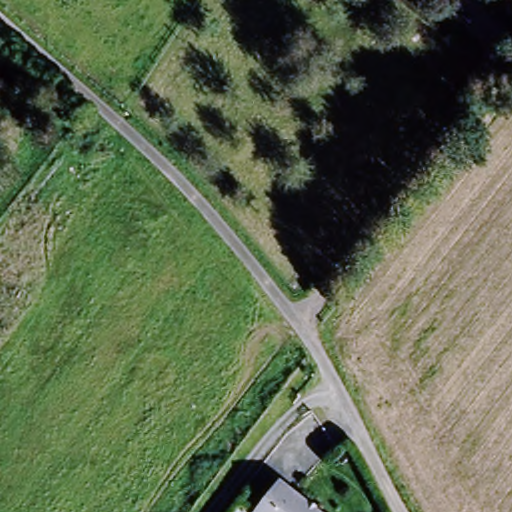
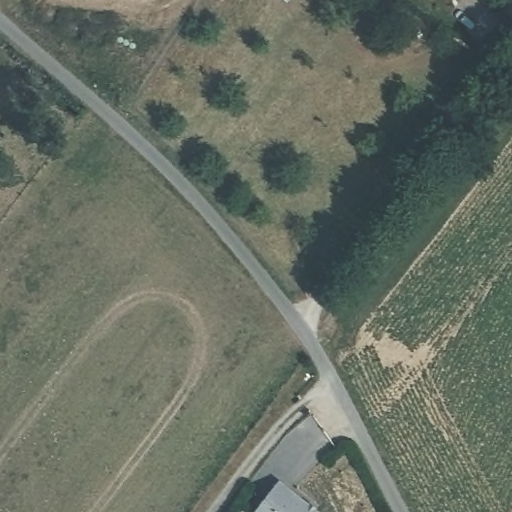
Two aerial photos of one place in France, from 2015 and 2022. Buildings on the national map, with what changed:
unchanged [(510,0),(512,0),(512,17),(503,11),(510,0)]
unchanged [(322,512),(263,512),(283,484),(322,512)]

